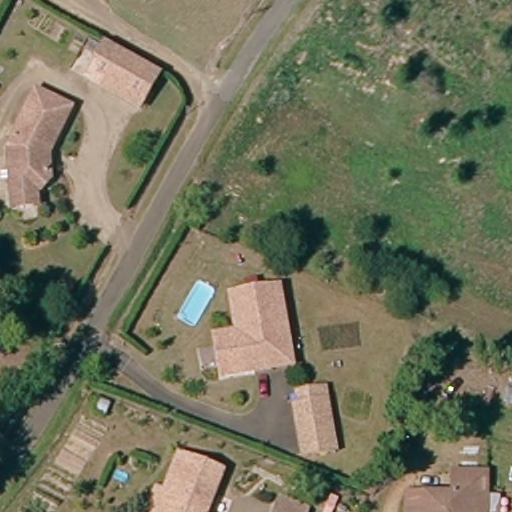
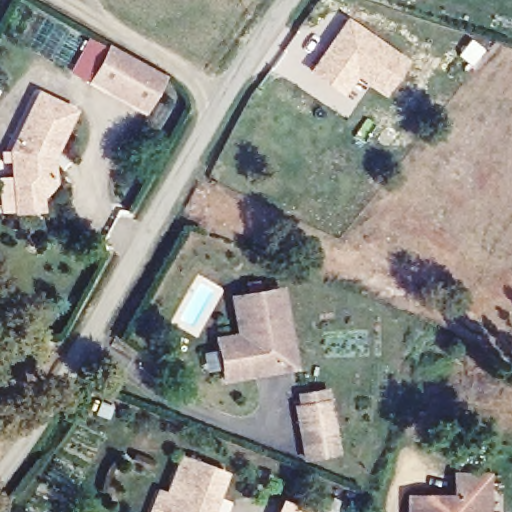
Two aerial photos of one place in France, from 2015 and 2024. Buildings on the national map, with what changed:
new [(344,15),(407,59),(382,95),(356,76),(341,94),(307,72),(344,15)]
unchanged [(109,50),(162,78),(144,111),(100,87),(91,82),(109,50)]
unchanged [(9,192),(5,152),(36,93),(69,111),(44,159),(47,182),(40,191),(32,192),(32,208),(10,209),(9,192)]
unchanged [(222,380),(216,340),(239,336),(232,297),(282,288),(293,367),(272,372),(255,375),(222,380)]
unchanged [(338,404),(334,467),(302,465),(306,412),(311,413),(311,403),(338,404)]
unchanged [(184,460),(226,478),(212,512),(153,512),(160,493),(168,497),(184,460)]
unchanged [(408,507),(418,496),(444,496),(456,496),(456,474),(491,475),(490,498),(489,512),(408,512),(408,507)]
unchanged [(300,512),(283,512),(286,506),(300,512)]

